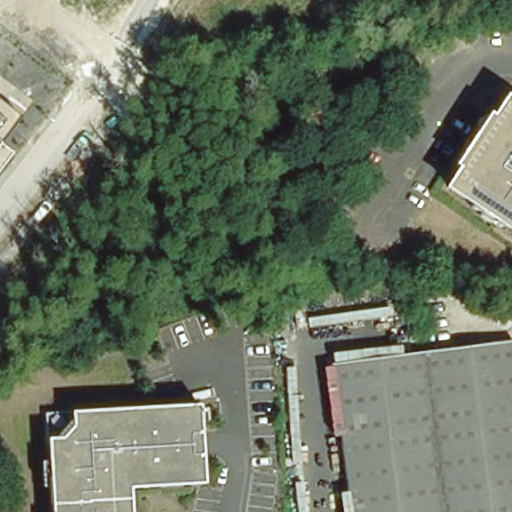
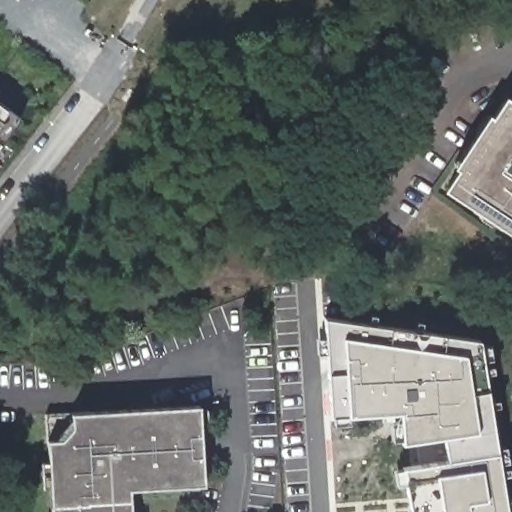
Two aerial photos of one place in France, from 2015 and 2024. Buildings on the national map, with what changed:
unchanged [(473,155),(490,130),(511,99),(512,100),(512,226),(499,217),(485,208),(452,186),(473,155)]
unchanged [(19,117),(0,142),(0,103),(19,117)]
new [(403,486),(400,467),(455,460),(450,435),(410,440),(396,440),(396,421),(387,422),(386,411),(340,414),(333,316),(490,337),(512,477),(512,512),(420,512),(414,484),(403,486)]
demolished [(512,512),(350,512),(325,369),(506,338),(512,375),(512,512)]
unchanged [(133,487),(135,512),(50,512),(45,412),(202,403),(205,484),(133,487)]

